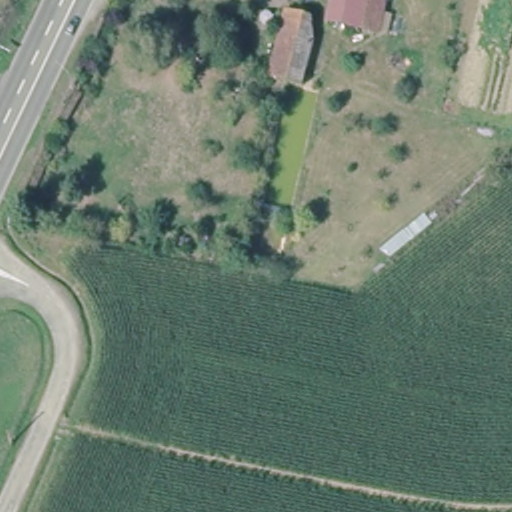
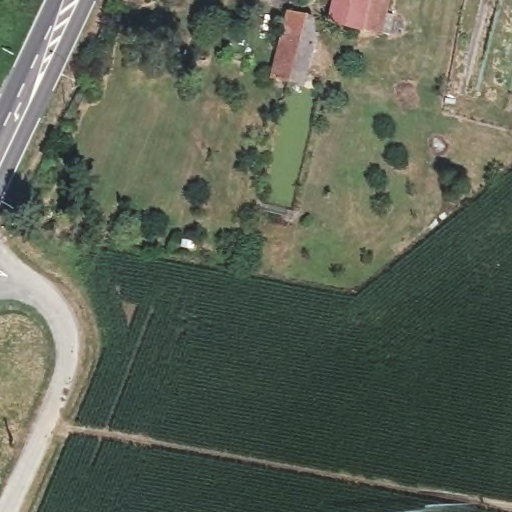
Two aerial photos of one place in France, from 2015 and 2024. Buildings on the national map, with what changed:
unchanged [(382,30),(329,20),(332,0),(387,0),(382,30)]
unchanged [(273,76),(287,7),(320,18),(300,80),(273,76)]

